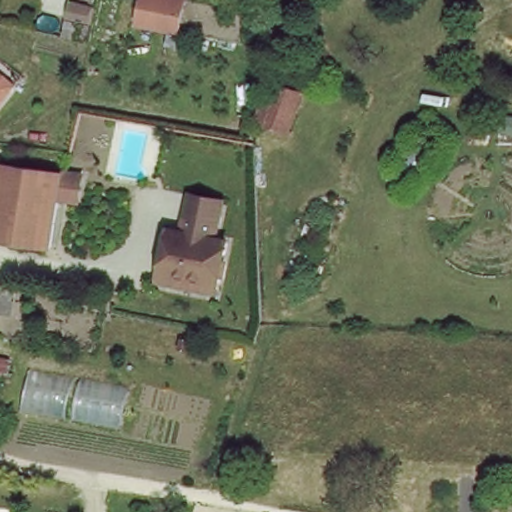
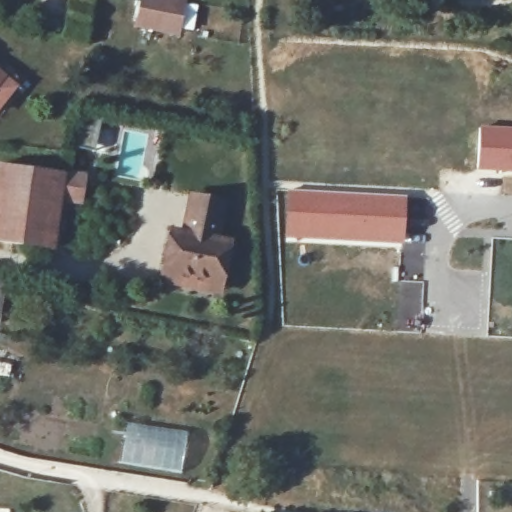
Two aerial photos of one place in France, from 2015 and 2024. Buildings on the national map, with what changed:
unchanged [(183,0),(177,32),(136,23),(141,0),(181,0),(183,0)]
unchanged [(0,79),(0,74),(3,76),(0,79)]
demolished [(289,139),(253,129),(268,81),(305,96),(289,139)]
new [(477,168),(480,125),(512,127),(512,171),(477,168)]
unchanged [(87,184),(83,209),(66,206),(63,206),(54,256),(0,246),(0,188),(3,170),(70,182),(87,184)]
new [(407,194),(404,246),(283,240),(281,188),(407,194)]
unchanged [(160,277),(162,266),(170,228),(183,230),(188,209),(191,193),(222,200),(219,216),(215,237),(228,240),(220,279),(218,289),(160,277)]
new [(395,279),(425,279),(422,321),(393,320),(395,279)]
unchanged [(4,323),(0,323),(0,285),(2,285),(21,288),(16,319),(5,318),(4,323)]
new [(23,410),(31,371),(130,389),(123,427),(23,410)]

